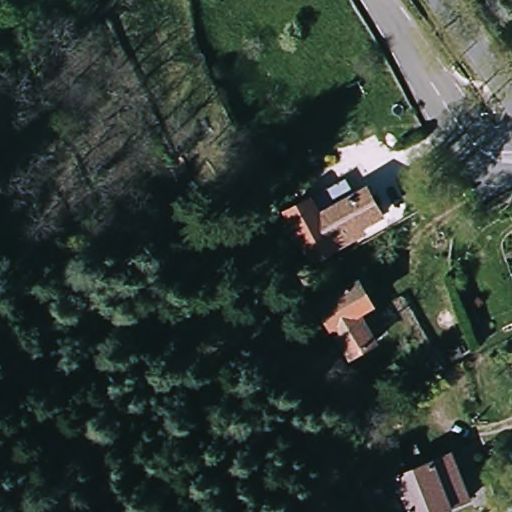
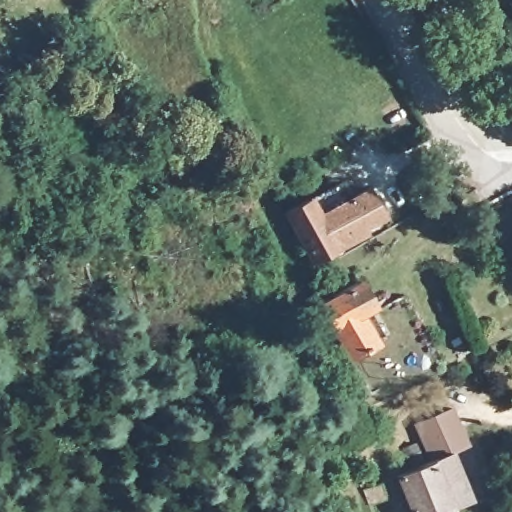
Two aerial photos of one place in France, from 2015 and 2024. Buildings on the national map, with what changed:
unchanged [(287,213),(312,199),(321,215),(370,188),(386,215),(337,242),(339,247),(314,261),(287,213)]
unchanged [(322,332),(330,328),(317,305),(357,283),(370,306),(366,309),(380,333),(372,338),(373,341),(345,356),(338,342),(330,347),(322,332)]
new [(413,425),(452,407),(469,442),(445,452),(429,459),(413,425)]
unchanged [(411,439),(420,457),(408,463),(400,444),(411,439)]
unchanged [(436,512),(409,512),(393,473),(445,452),(465,500),(436,512)]
unchanged [(365,502),(359,487),(377,480),(384,495),(365,502)]

